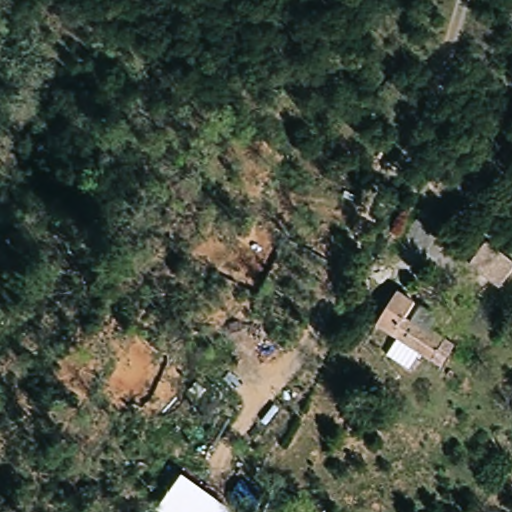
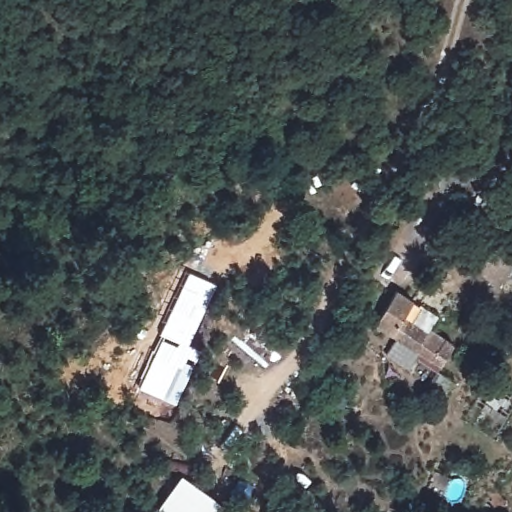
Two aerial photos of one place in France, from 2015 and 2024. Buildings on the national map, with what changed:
unchanged [(504,286),(470,268),(480,248),(512,258),(512,272),(504,286)]
new [(139,386),(163,335),(159,334),(189,271),(216,285),(189,346),(203,353),(176,405),(139,386)]
unchanged [(375,326),(397,292),(411,302),(403,314),(426,328),(428,324),(446,336),(430,361),(418,353),(403,376),(379,360),(393,337),(375,326)]
unchanged [(230,512),(161,512),(157,509),(183,474),(231,510),(230,512)]

